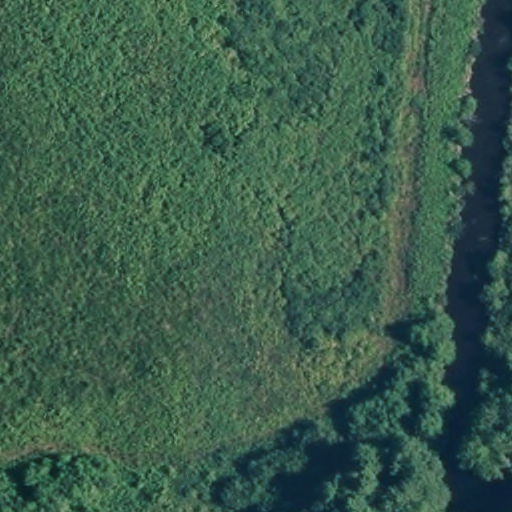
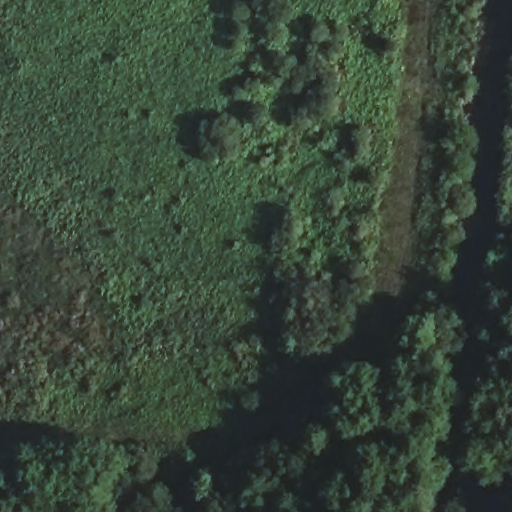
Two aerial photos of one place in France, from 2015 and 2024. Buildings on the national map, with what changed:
[]

